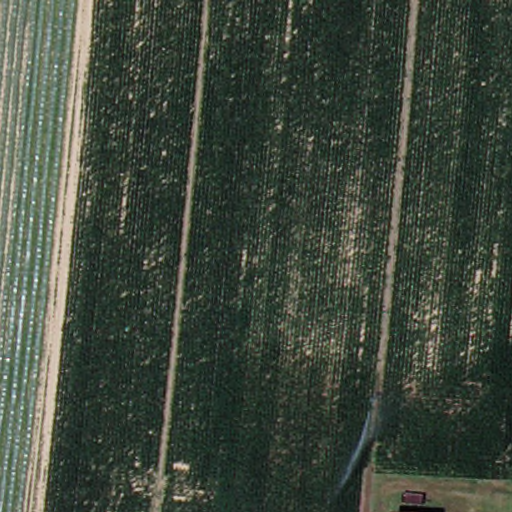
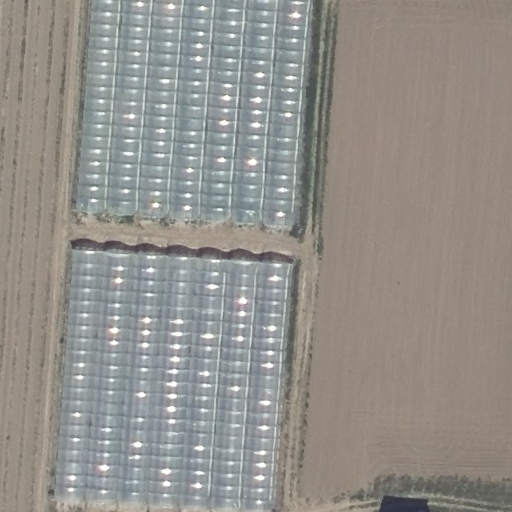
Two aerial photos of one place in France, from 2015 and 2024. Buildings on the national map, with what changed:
new [(74,210),(90,0),(309,0),(291,226),(74,210)]
new [(272,512),(241,512),(52,500),(69,248),(291,263),(272,512)]

